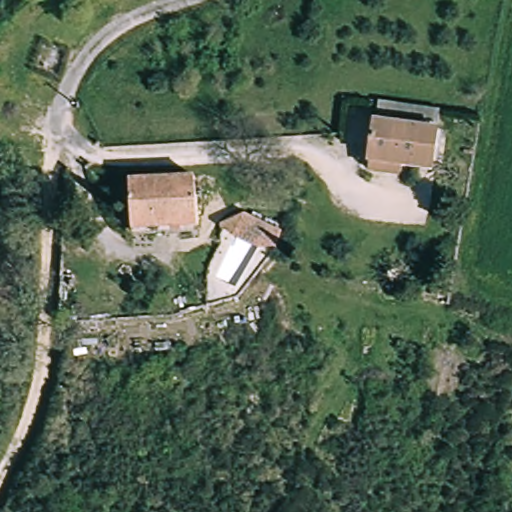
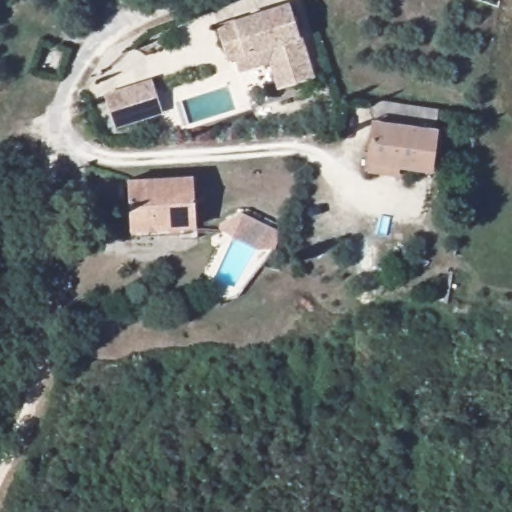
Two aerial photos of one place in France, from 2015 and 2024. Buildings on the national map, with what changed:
new [(236,18),(291,1),(301,37),(316,77),(279,89),(272,64),(241,73),(236,59),(228,62),(216,25),(236,18)]
new [(152,79),(164,115),(117,128),(105,95),(152,79)]
unchanged [(371,152),(378,114),(435,121),(428,161),(371,152)]
unchanged [(130,232),(128,172),(190,168),(192,227),(130,232)]
unchanged [(229,207),(280,229),(269,255),(222,229),(229,207)]

